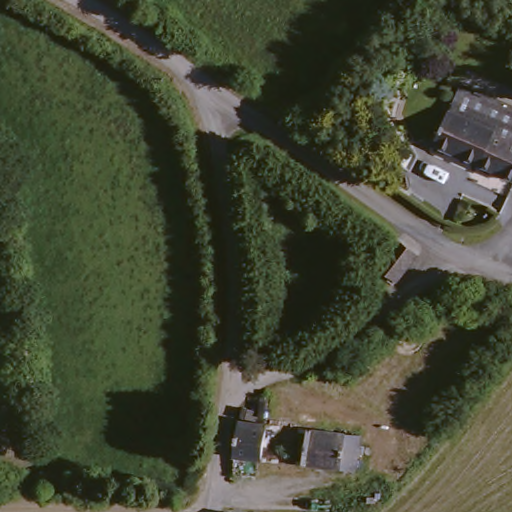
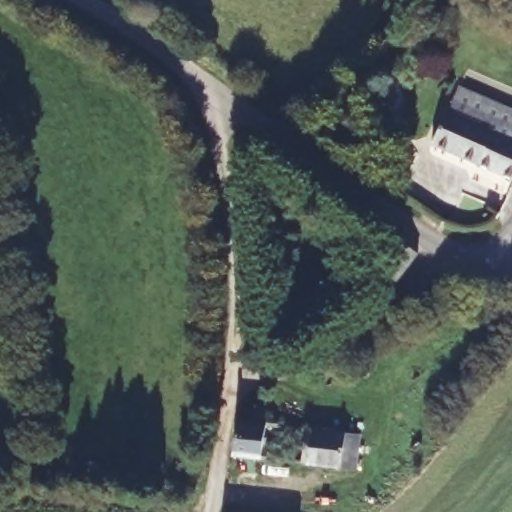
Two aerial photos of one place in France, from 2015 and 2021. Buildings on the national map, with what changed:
unchanged [(454,108),(465,79),(512,101),(512,138),(499,132),(500,129),(454,108)]
unchanged [(499,132),(512,138),(512,181),(436,145),(454,108),(500,129),(499,132)]
unchanged [(404,279),(402,277),(384,265),(405,233),(422,251),(404,279)]
unchanged [(267,455),(244,452),(248,418),(273,422),(320,428),(316,463),(314,462),(267,455)]
unchanged [(320,428),(334,430),(369,435),(368,439),(363,469),(316,463),(320,428)]

